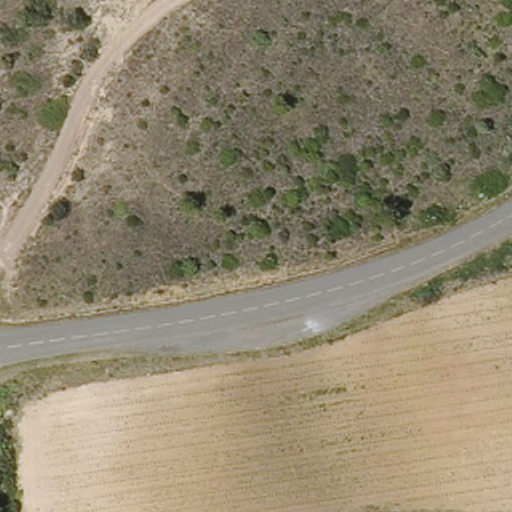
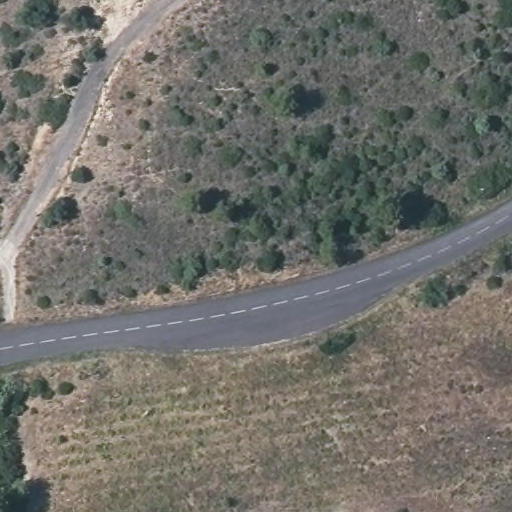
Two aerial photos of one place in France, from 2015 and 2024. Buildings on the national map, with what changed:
[]

